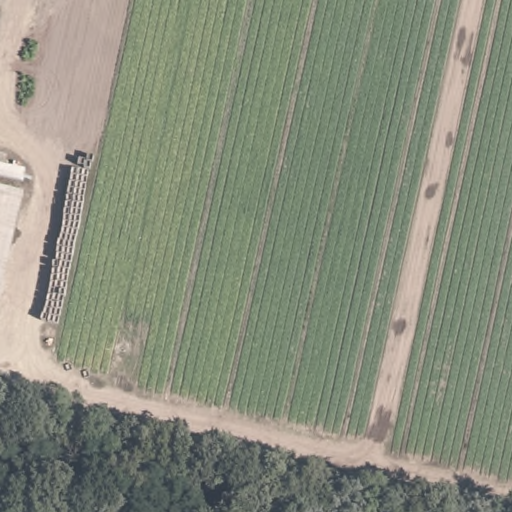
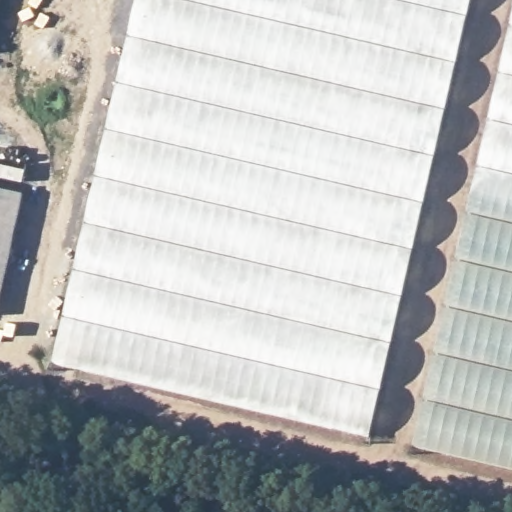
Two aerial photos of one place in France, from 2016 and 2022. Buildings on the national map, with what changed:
new [(52,362),(136,0),(473,0),(371,437),(52,362)]
new [(512,13),(512,469),(411,446),(512,13)]
unchanged [(0,301),(0,162),(28,169),(0,301)]

